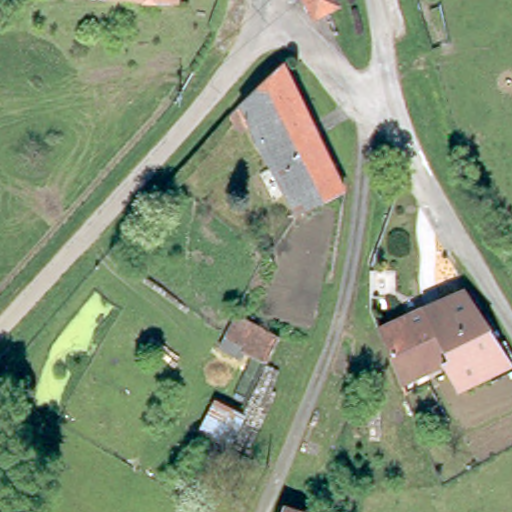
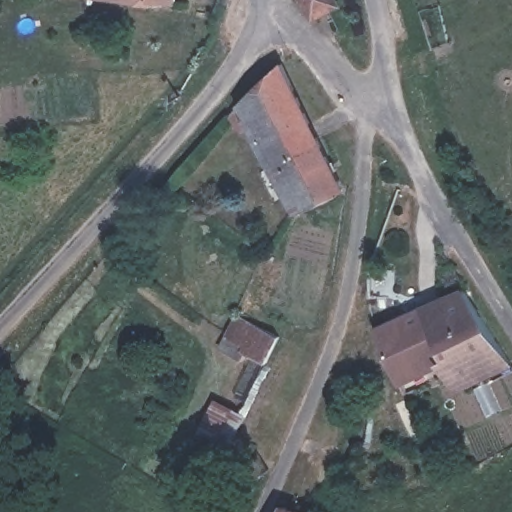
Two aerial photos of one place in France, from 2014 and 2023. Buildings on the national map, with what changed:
unchanged [(178,1),(166,0),(179,0),(178,1)]
unchanged [(320,15),(310,13),(305,0),(341,0),(340,5),(320,15)]
unchanged [(343,187),(295,210),(252,120),(241,125),(230,111),(283,61),(343,187)]
unchanged [(512,358),(459,384),(445,355),(404,377),(380,322),(465,283),(505,343),(512,354),(512,358)]
unchanged [(240,350),(242,345),(223,334),(232,314),(273,335),(262,361),(240,350)]
unchanged [(201,428),(215,401),(245,417),(232,444),(201,428)]
unchanged [(288,512),(290,505),(318,512),(288,512)]

